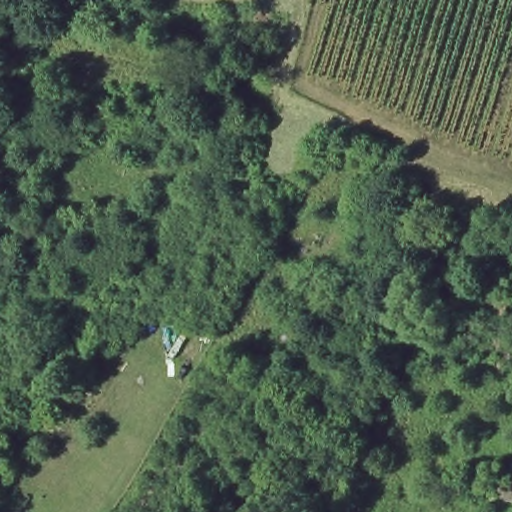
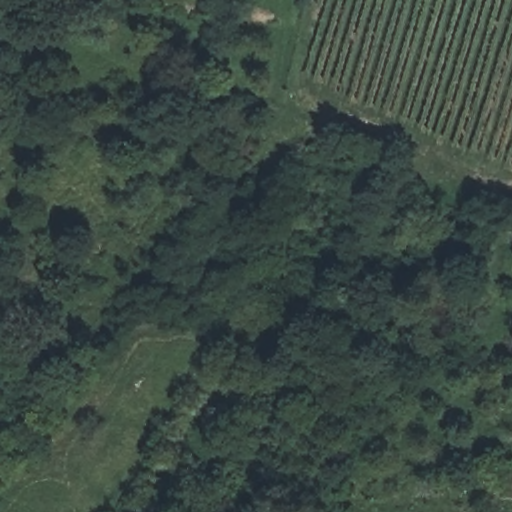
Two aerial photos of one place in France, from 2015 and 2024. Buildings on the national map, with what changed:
[]

